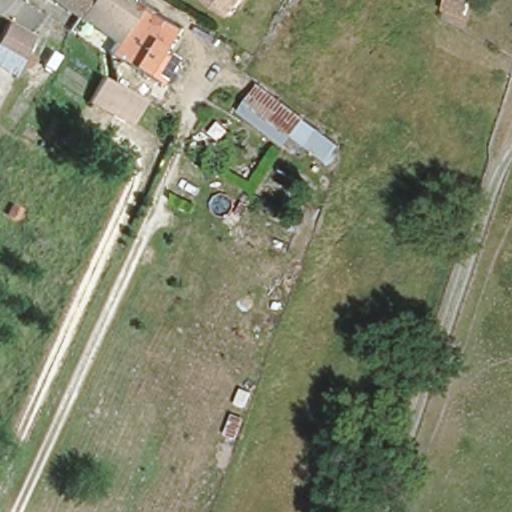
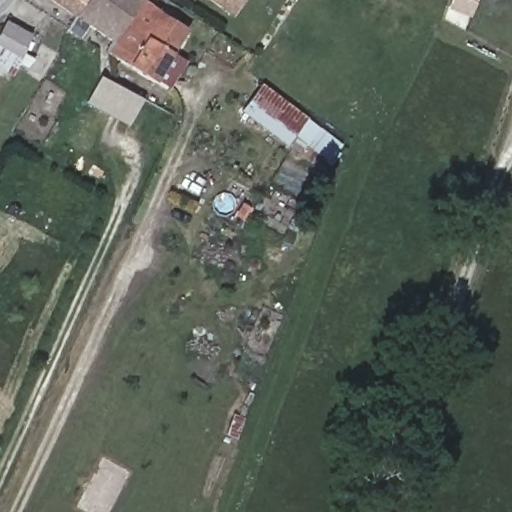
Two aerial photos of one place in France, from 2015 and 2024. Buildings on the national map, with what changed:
unchanged [(54,0),(88,0),(76,16),(54,0)]
unchanged [(141,0),(110,40),(76,16),(88,0),(141,0)]
unchanged [(103,49),(110,40),(141,0),(145,0),(165,16),(173,6),(196,21),(156,82),(103,49)]
unchanged [(214,0),(246,0),(235,15),(214,0)]
unchanged [(450,0),(476,0),(471,19),(446,12),(450,0)]
unchanged [(14,77),(0,70),(0,33),(5,25),(34,41),(14,77)]
unchanged [(111,80),(144,97),(130,122),(88,100),(101,74),(111,80)]
unchanged [(307,118),(344,144),(330,165),(294,140),(287,148),(240,111),(264,86),(307,118)]
unchanged [(4,217),(11,202),(24,209),(17,224),(4,217)]

